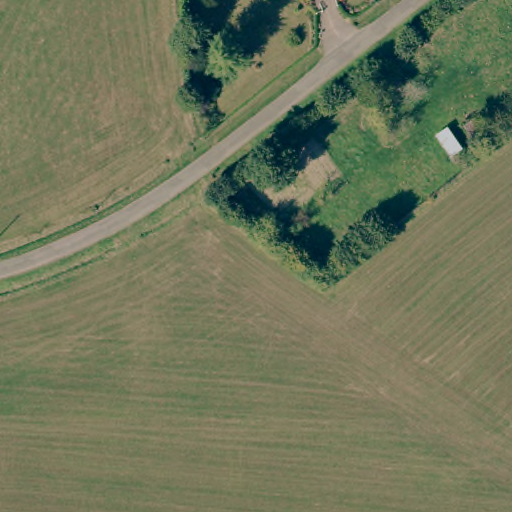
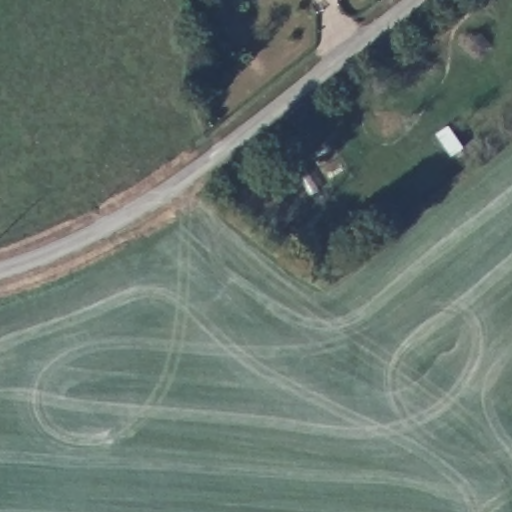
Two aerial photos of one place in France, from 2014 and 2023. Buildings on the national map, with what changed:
[]

